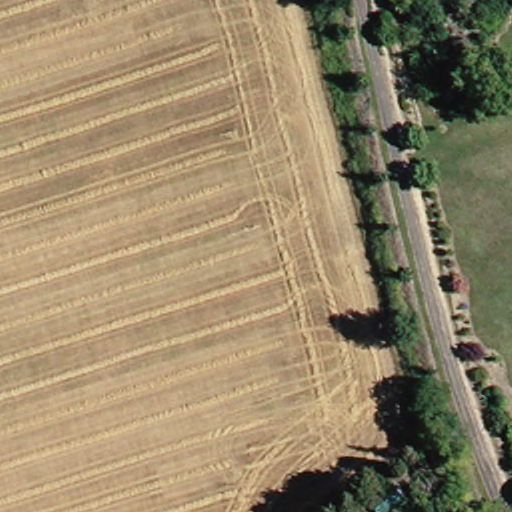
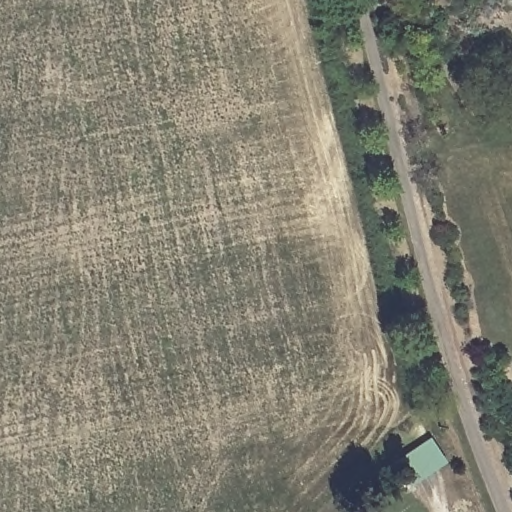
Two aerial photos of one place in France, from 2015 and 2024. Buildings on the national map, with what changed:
new [(410,487),(394,462),(432,438),(448,462),(410,487)]

